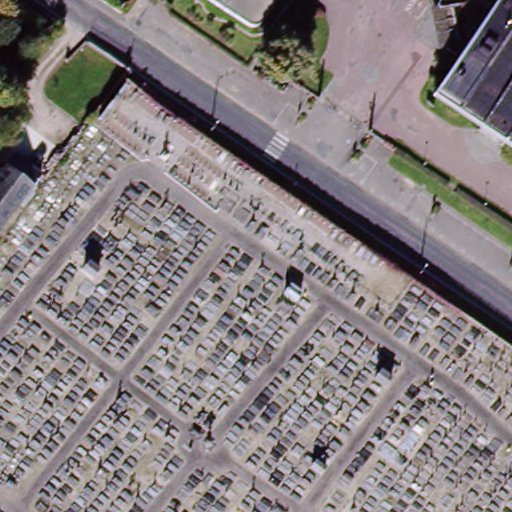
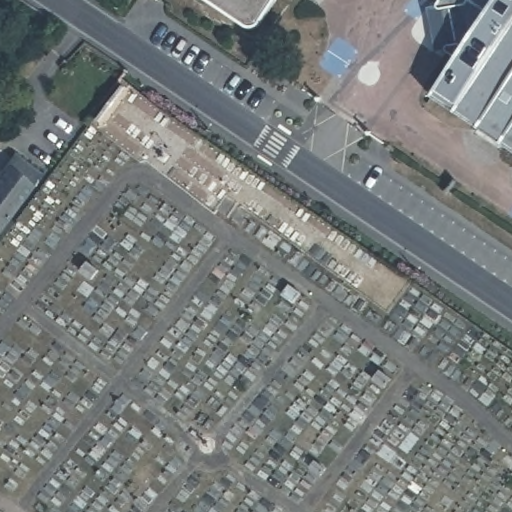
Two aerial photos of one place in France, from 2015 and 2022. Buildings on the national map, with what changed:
unchanged [(115,9),(102,0),(121,0),(115,9)]
unchanged [(216,0),(267,0),(250,24),(216,0)]
unchanged [(455,59),(444,50),(435,3),(437,0),(512,0),(512,148),(430,94),(455,59)]
unchanged [(45,154),(74,115),(80,120),(51,159),(45,154)]
unchanged [(12,159),(37,177),(0,226),(0,174),(12,159)]

